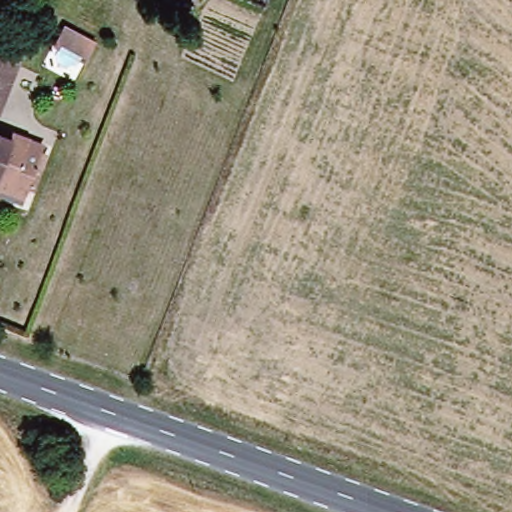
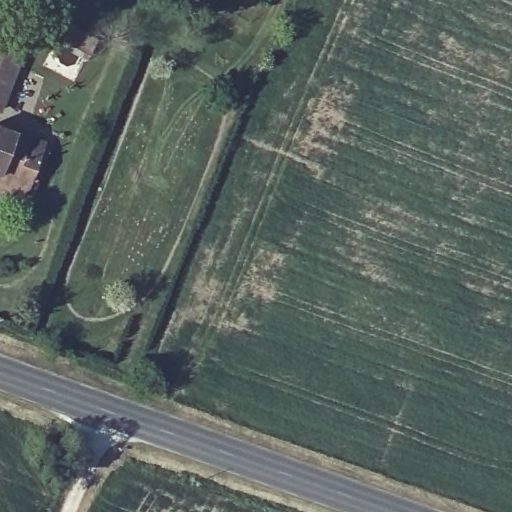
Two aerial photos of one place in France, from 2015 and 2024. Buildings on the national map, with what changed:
unchanged [(0,103),(0,51),(17,57),(0,103)]
unchanged [(24,187),(0,177),(0,132),(40,148),(24,187)]
unchanged [(18,201),(0,195),(0,177),(24,187),(18,201)]

